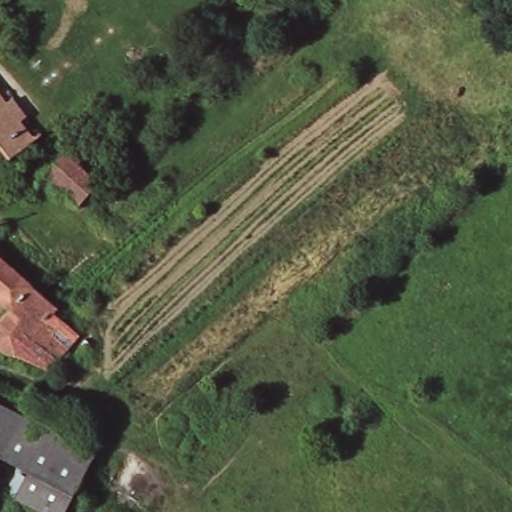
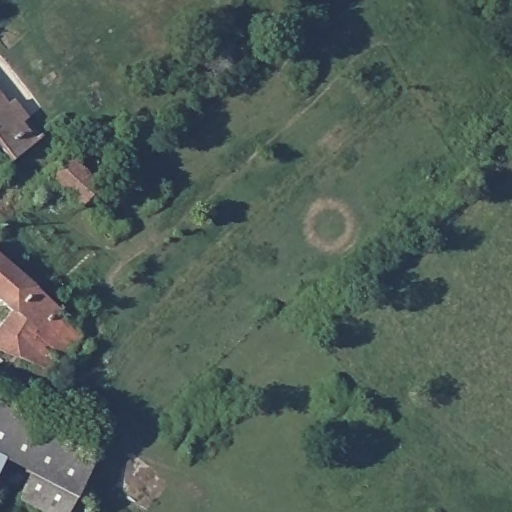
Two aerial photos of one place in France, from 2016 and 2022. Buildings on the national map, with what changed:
unchanged [(9,161),(0,149),(0,95),(4,93),(42,139),(9,161)]
unchanged [(76,144),(110,175),(72,208),(41,182),(76,144)]
unchanged [(0,353),(0,320),(9,311),(0,303),(0,259),(57,309),(53,315),(80,341),(46,376),(0,353)]
unchanged [(39,512),(14,500),(26,476),(3,464),(0,470),(0,407),(78,448),(91,455),(84,471),(64,512),(39,512)]

